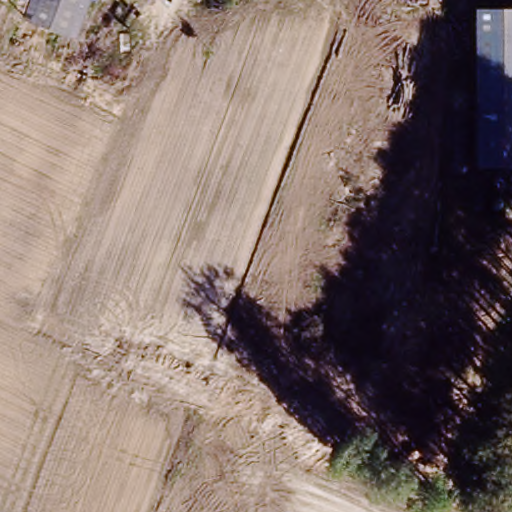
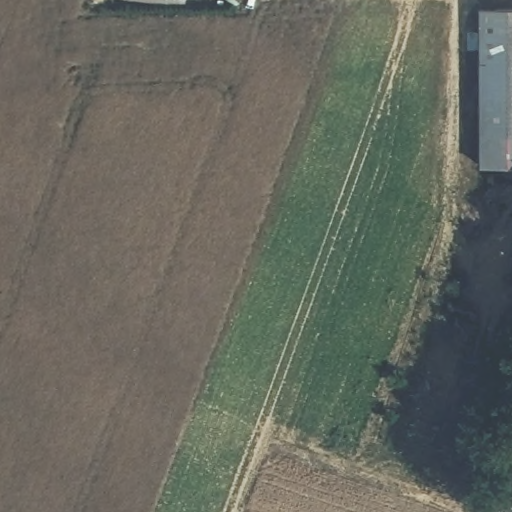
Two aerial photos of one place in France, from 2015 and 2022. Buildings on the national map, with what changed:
demolished [(25,15),(32,0),(95,0),(83,34),(25,15)]
unchanged [(512,10),(512,171),(474,171),(471,11),(512,10)]

